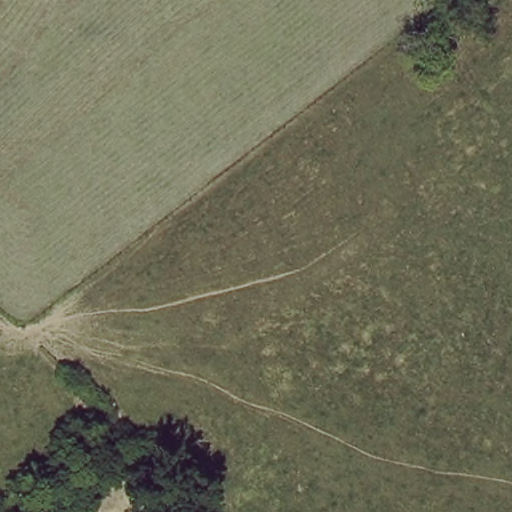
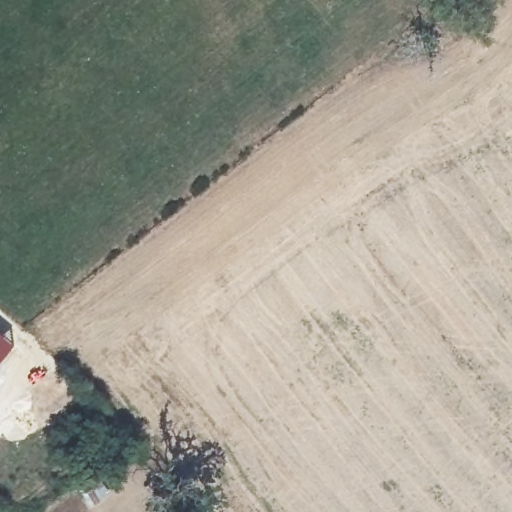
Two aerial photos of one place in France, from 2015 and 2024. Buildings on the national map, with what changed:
new [(15,345),(0,364),(0,332),(15,345)]
new [(0,384),(0,375),(5,379),(0,384)]

